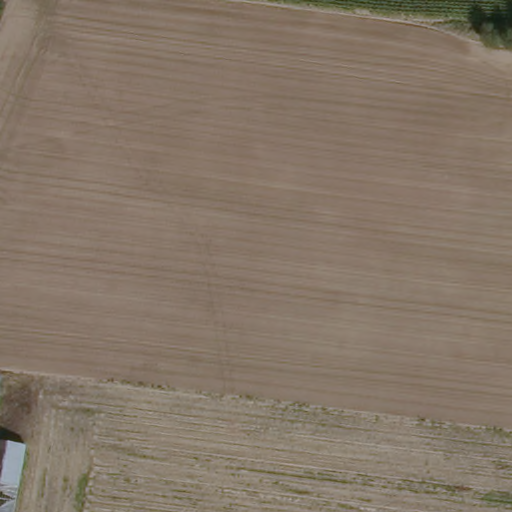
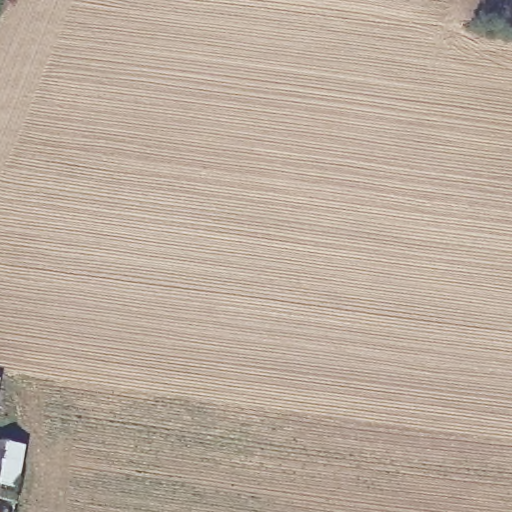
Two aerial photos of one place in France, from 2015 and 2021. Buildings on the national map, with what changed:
unchanged [(1,386),(0,395),(0,385),(1,386)]
unchanged [(0,505),(0,428),(27,434),(13,508),(0,505)]

